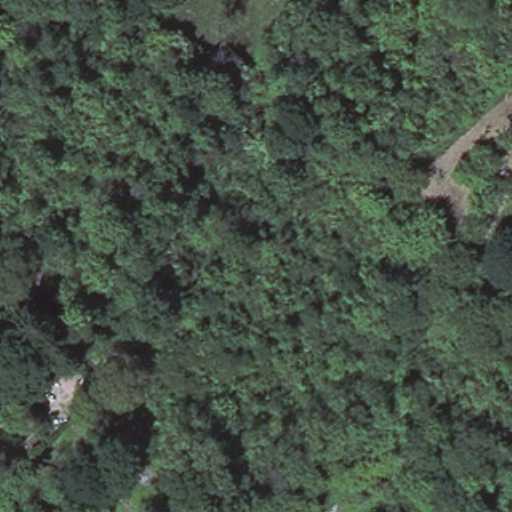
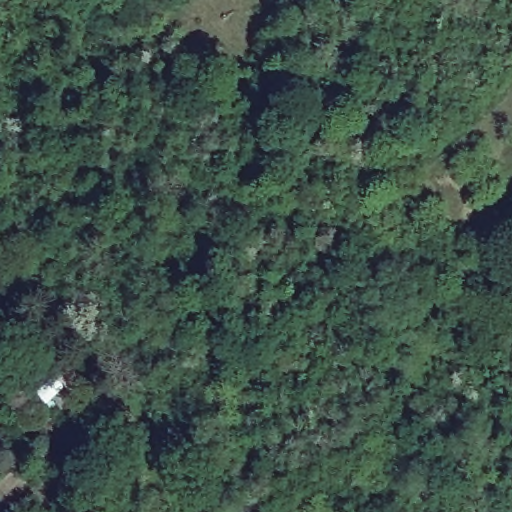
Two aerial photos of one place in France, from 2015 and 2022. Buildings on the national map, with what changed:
unchanged [(67,360),(83,378),(49,411),(31,395),(67,360)]

